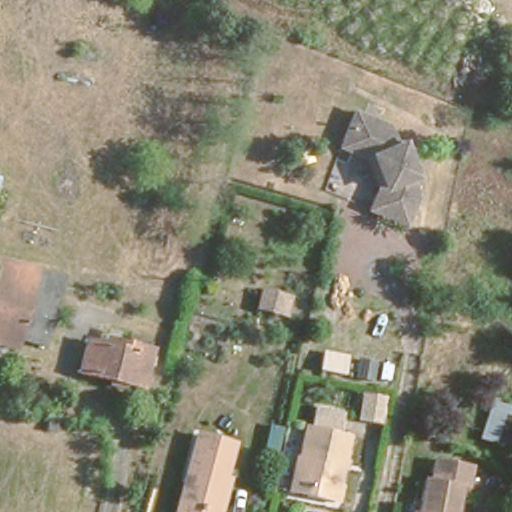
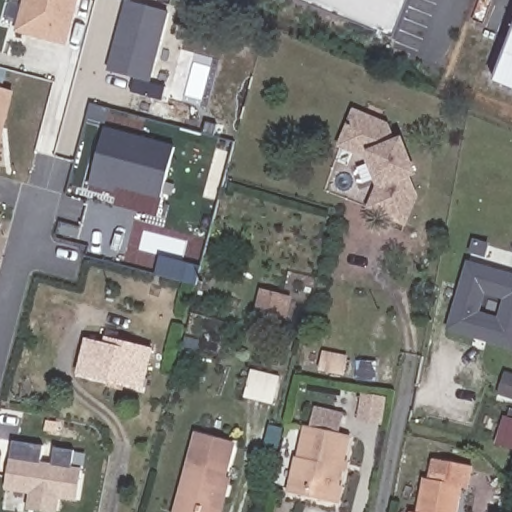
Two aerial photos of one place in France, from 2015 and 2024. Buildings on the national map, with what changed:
new [(17,26),(23,0),(74,0),(64,39),(17,26)]
new [(107,69),(126,0),(132,0),(167,10),(148,80),(107,69)]
new [(298,0),(406,0),(391,37),(298,0)]
new [(512,88),(493,80),(512,34),(512,88)]
new [(0,122),(0,88),(9,90),(0,122)]
unchanged [(397,142),(403,139),(408,146),(402,150),(411,162),(416,160),(421,166),(413,171),(425,192),(418,216),(386,206),(392,186),(372,153),(361,149),(341,140),(352,112),(367,117),(382,122),(397,142)]
new [(172,148),(160,196),(92,177),(103,132),(172,148)]
new [(154,276),(159,256),(201,266),(197,286),(154,276)]
new [(512,276),(512,347),(448,329),(468,263),(512,276)]
demolished [(47,340),(14,331),(10,342),(0,340),(0,274),(59,290),(47,340)]
unchanged [(291,320),(255,312),(260,288),(295,295),(291,320)]
unchanged [(77,367),(85,339),(99,341),(102,331),(155,347),(144,386),(77,367)]
unchanged [(380,423),(358,418),(363,397),(385,402),(382,412),(380,423)]
unchanged [(491,403),(509,409),(510,410),(512,410),(512,445),(506,442),(500,440),(479,433),(491,403)]
unchanged [(301,427),(304,410),(336,416),(331,433),(335,435),(347,437),(331,501),(317,498),(286,491),(301,427)]
unchanged [(177,495),(192,428),(232,435),(217,503),(215,512),(174,512),(177,495)]
new [(72,501),(52,496),(47,511),(22,505),(26,490),(1,482),(13,436),(43,444),(39,462),(50,465),(54,447),(74,452),(69,470),(79,473),(72,501)]
unchanged [(412,510),(418,511),(424,478),(429,478),(428,475),(441,476),(443,456),(473,460),(468,486),(462,486),(457,512),(411,512),(412,510)]

